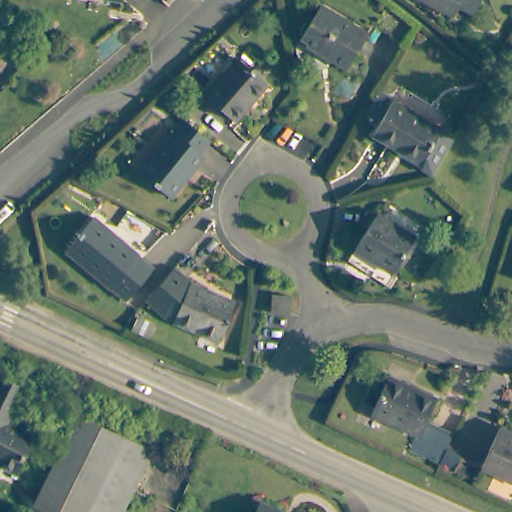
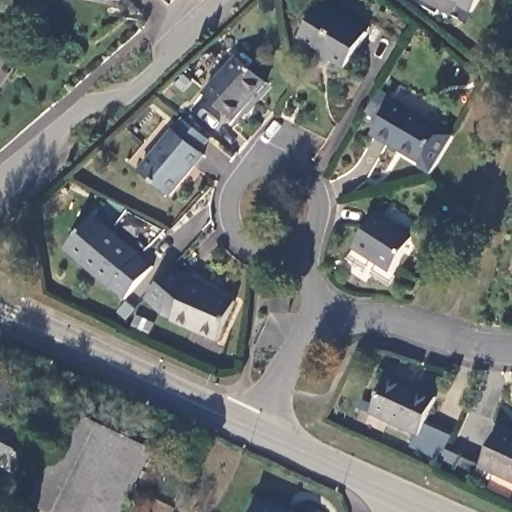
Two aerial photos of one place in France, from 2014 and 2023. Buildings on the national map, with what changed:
unchanged [(465,8),(455,2),(445,14),(424,0),(470,0),(465,8)]
unchanged [(338,66),(293,35),(314,2),(359,31),(338,66)]
unchanged [(227,122),(196,96),(231,57),(260,84),(227,122)]
unchanged [(421,175),(412,165),(411,161),(365,132),(385,99),(444,135),(421,175)]
unchanged [(161,198),(131,171),(166,132),(196,157),(161,198)]
unchanged [(386,271),(349,247),(369,215),(408,238),(386,271)]
unchanged [(120,298),(60,247),(88,217),(148,266),(120,298)]
unchanged [(180,287),(224,308),(208,340),(162,319),(165,313),(142,295),(165,270),(180,287)]
unchanged [(291,322),(273,321),(275,303),(293,305),(291,322)]
unchanged [(153,340),(136,332),(139,320),(157,329),(153,340)]
unchanged [(411,435),(363,412),(379,375),(429,398),(411,435)]
unchanged [(24,430),(7,467),(0,464),(0,389),(15,396),(2,418),(24,430)]
unchanged [(47,512),(33,505),(74,419),(141,450),(112,512),(47,512)]
unchanged [(497,419),(512,425),(512,428),(511,430),(512,430),(512,474),(479,458),(497,419)]
unchanged [(472,473),(452,464),(437,457),(441,450),(444,443),(459,450),(479,458),(472,473)]
unchanged [(248,512),(253,500),(283,512),(248,512)]

